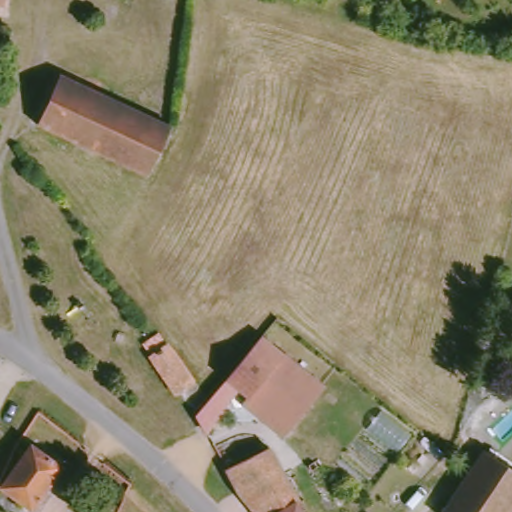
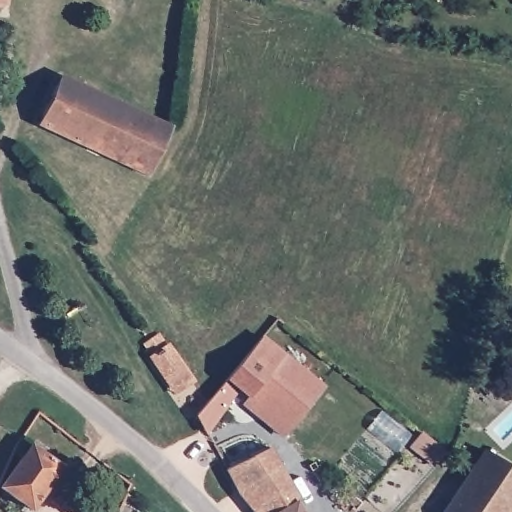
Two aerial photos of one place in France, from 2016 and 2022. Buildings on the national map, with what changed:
unchanged [(5,12),(0,11),(0,0),(8,0),(5,12)]
unchanged [(65,74),(132,105),(176,126),(153,177),(41,125),(65,74)]
unchanged [(179,394),(169,381),(152,356),(154,354),(147,342),(160,333),(186,370),(195,382),(179,394)]
unchanged [(243,400),(248,394),(228,377),(263,336),(268,339),(324,385),(311,400),(288,427),(283,432),(243,400)]
unchanged [(199,413),(211,399),(220,389),(233,403),(208,431),(199,413)]
unchanged [(232,468),(277,443),(303,491),(300,492),(311,512),(261,512),(244,492),(232,468)]
unchanged [(68,469),(37,511),(8,489),(37,447),(68,469)]
unchanged [(512,470),(512,509),(510,512),(446,512),(486,452),(512,470)]
unchanged [(100,512),(107,498),(120,507),(118,512),(100,512)]

